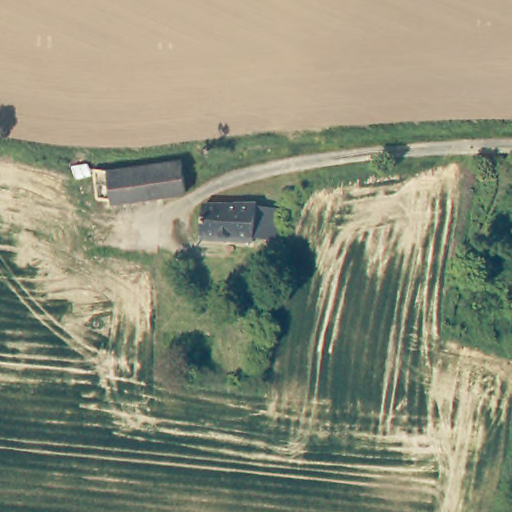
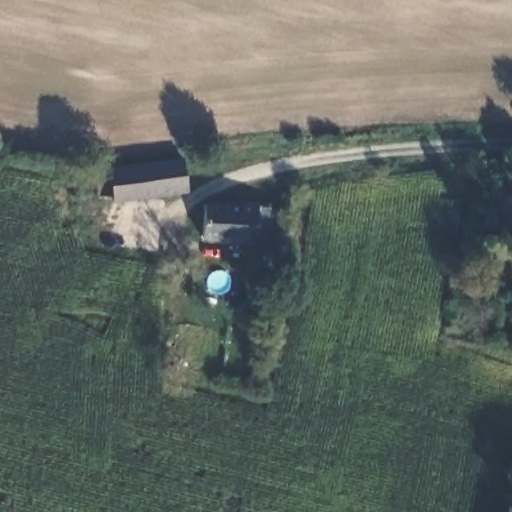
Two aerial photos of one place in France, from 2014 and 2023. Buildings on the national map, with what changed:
unchanged [(188,167),(187,197),(112,195),(112,188),(94,187),(98,162),(188,167)]
unchanged [(293,209),(292,210),(292,211),(292,212),(291,213),(290,214),(288,214),(287,214),(286,215),(285,214),(283,214),(282,214),(281,213),(281,212),(280,211),(279,210),(279,209),(278,207),(279,206),(279,205),(280,204),(281,203),(281,202),(282,201),(283,201),(285,200),(286,200),(287,200),(288,201),(290,201),(291,202),(292,203),(292,204),(292,205),(293,206),(293,207),(293,209)]
unchanged [(237,211),(237,210),(258,211),(258,213),(278,214),(277,245),(255,244),(255,247),(202,244),(205,210),(237,211)]

